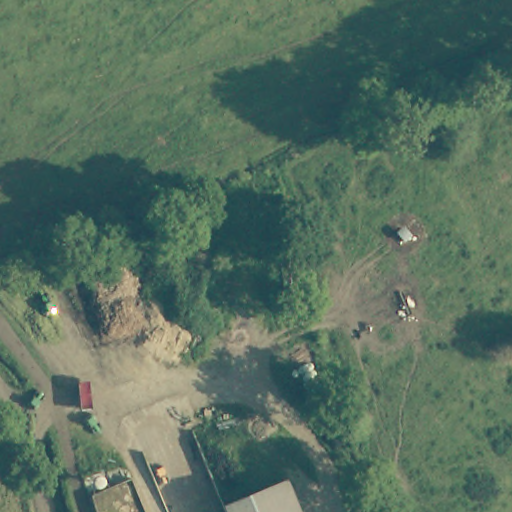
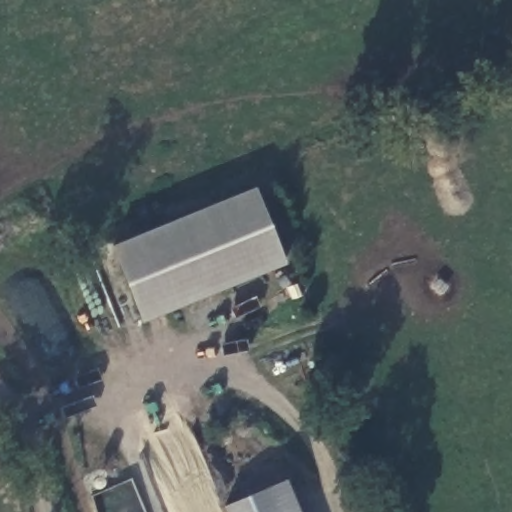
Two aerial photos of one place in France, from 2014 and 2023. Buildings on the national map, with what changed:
new [(112,246),(255,186),(287,263),(143,323),(112,246)]
unchanged [(282,479),(295,512),(278,512),(267,485),(282,479)]
unchanged [(267,485),(278,512),(224,512),(221,504),(267,485)]

